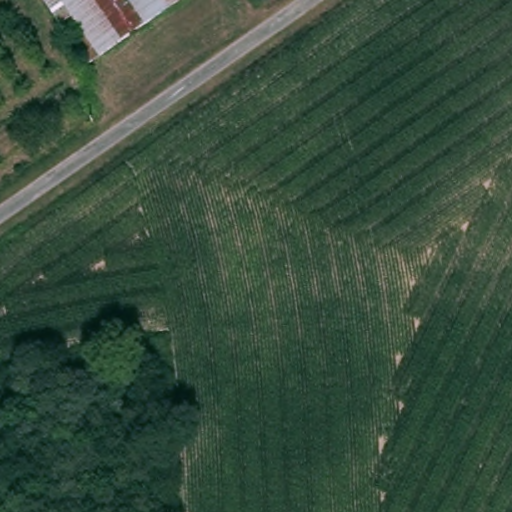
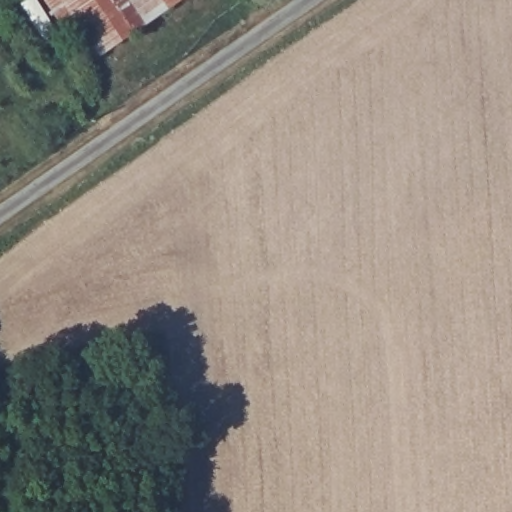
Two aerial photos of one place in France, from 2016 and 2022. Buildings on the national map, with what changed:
unchanged [(44,0),(178,0),(87,63),(44,0)]

